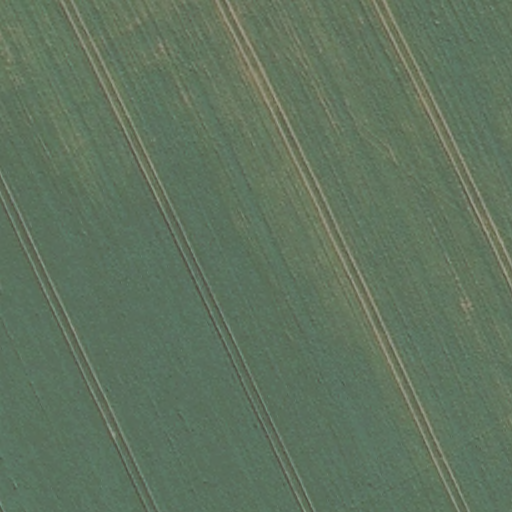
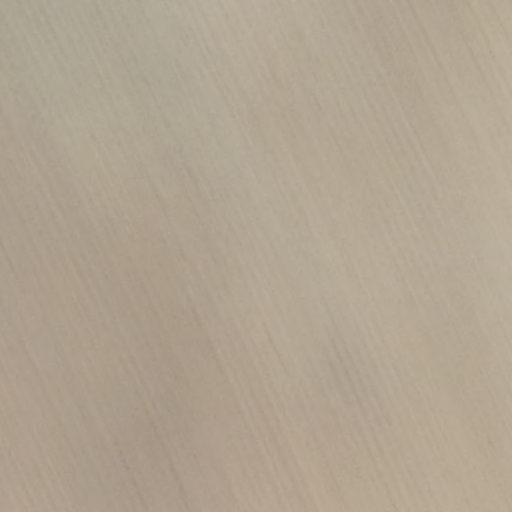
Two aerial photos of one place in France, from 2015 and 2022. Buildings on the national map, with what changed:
[]

